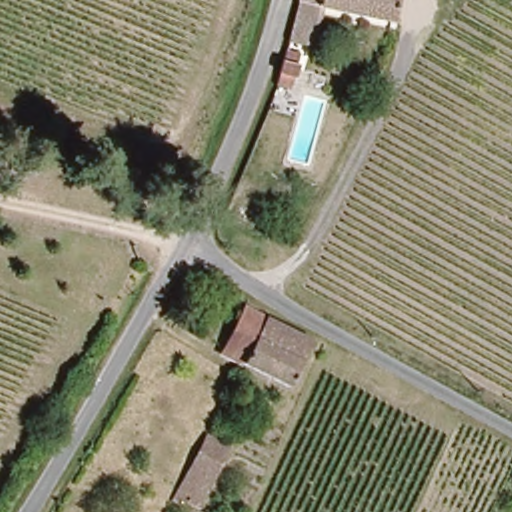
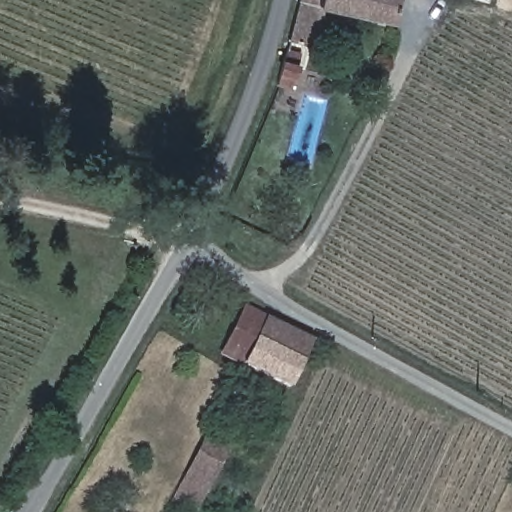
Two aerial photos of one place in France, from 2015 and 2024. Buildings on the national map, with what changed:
unchanged [(390,24),(296,4),(297,0),(395,0),(390,24)]
unchanged [(300,53),(289,89),(274,86),(284,49),(300,53)]
unchanged [(240,304),(312,341),(289,385),(218,348),(240,304)]
unchanged [(201,437),(223,448),(193,509),(187,506),(170,498),(201,437)]

